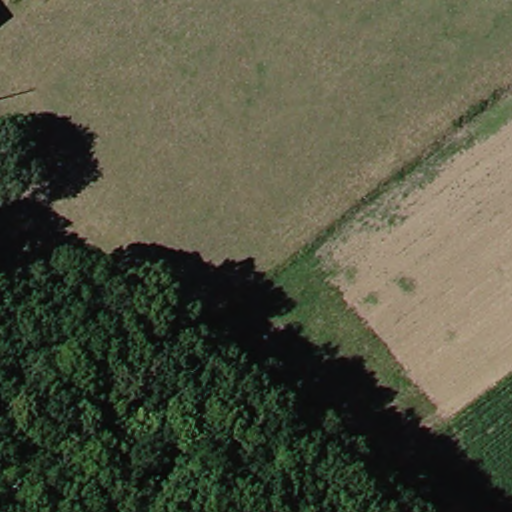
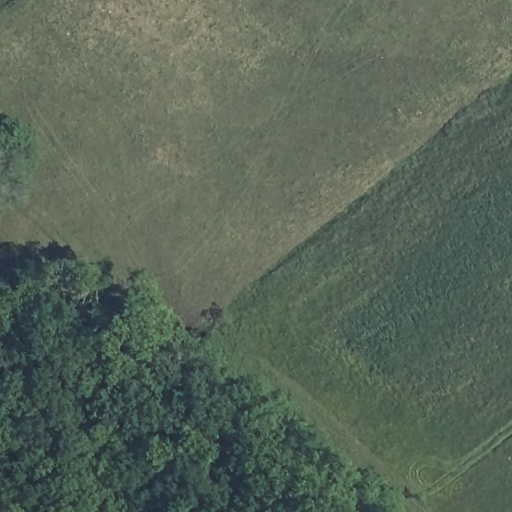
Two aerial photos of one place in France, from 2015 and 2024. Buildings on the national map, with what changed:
unchanged [(5,19),(0,23),(0,14),(5,19)]

